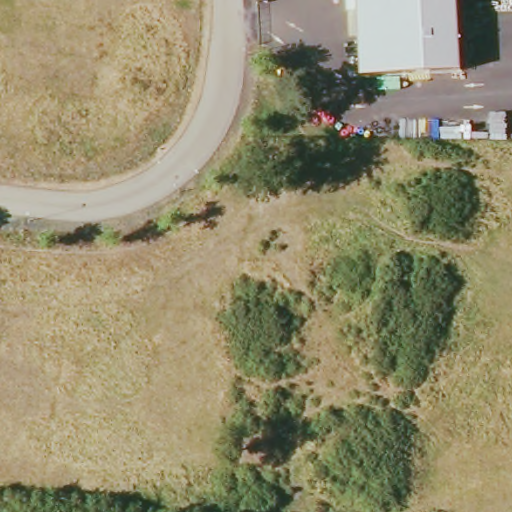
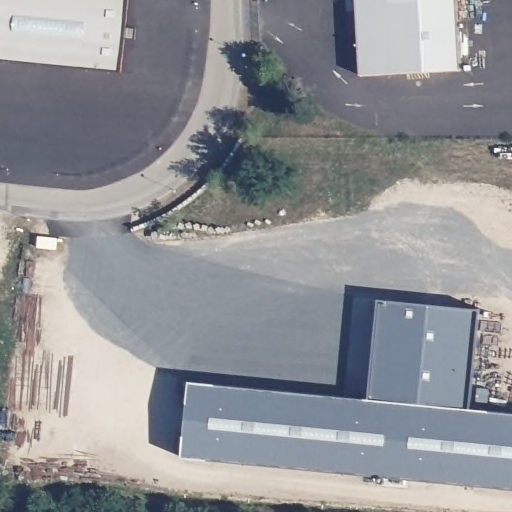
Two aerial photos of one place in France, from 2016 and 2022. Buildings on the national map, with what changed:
unchanged [(359,77),(354,0),(457,0),(461,70),(359,77)]
new [(183,457),(189,383),(369,401),(377,302),(481,311),(471,411),(512,415),(512,489),(183,457)]

